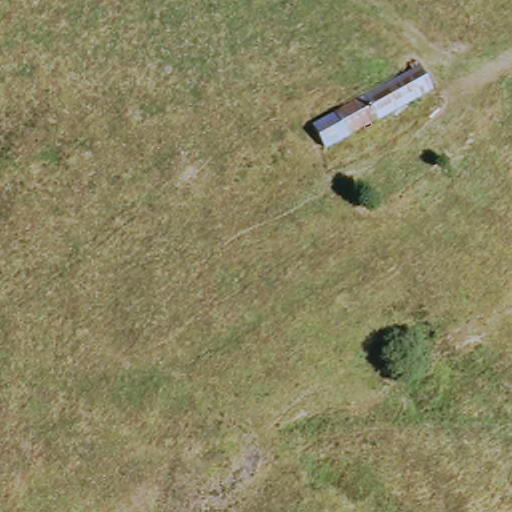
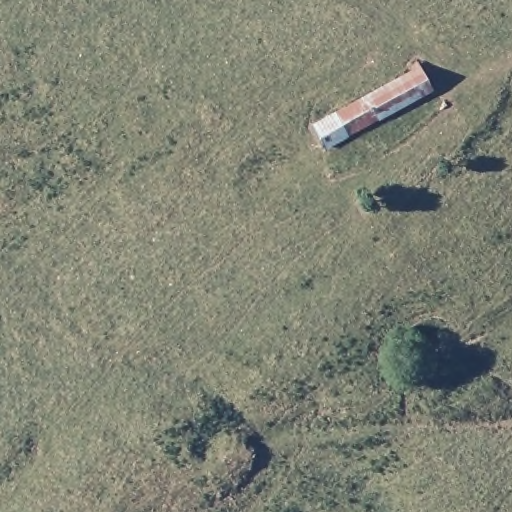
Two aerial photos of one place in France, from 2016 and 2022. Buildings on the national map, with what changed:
unchanged [(321,150),(302,124),(413,64),(429,93),(321,150)]

